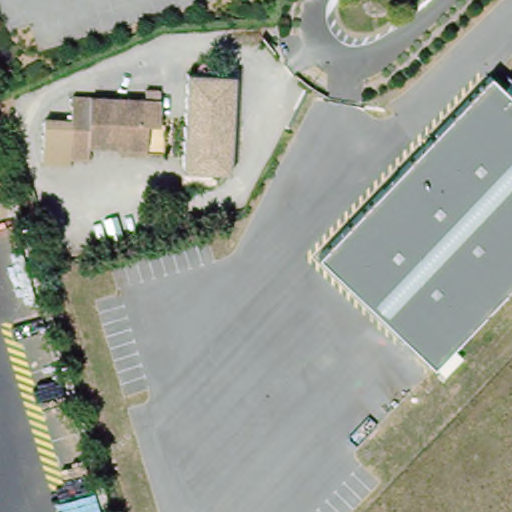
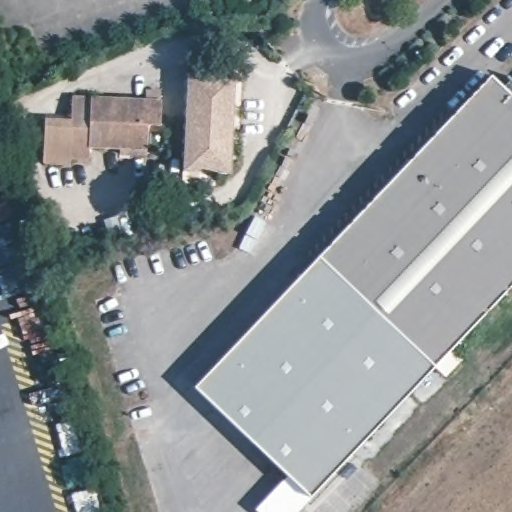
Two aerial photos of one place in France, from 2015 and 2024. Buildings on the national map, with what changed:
unchanged [(180,171),(185,76),(229,79),(225,174),(180,171)]
unchanged [(486,76),(508,96),(512,93),(512,280),(429,365),(315,258),(486,76)]
unchanged [(122,161),(123,150),(91,149),(91,162),(70,161),(70,169),(42,167),(44,121),(72,122),(74,97),(164,100),(163,132),(149,131),(147,151),(145,150),(144,162),(122,161)]
new [(306,496),(191,385),(315,258),(429,365),(306,496)]
new [(128,414),(157,405),(170,449),(141,458),(128,414)]

